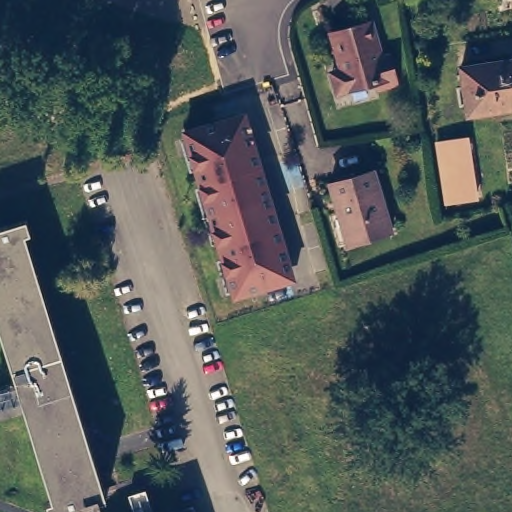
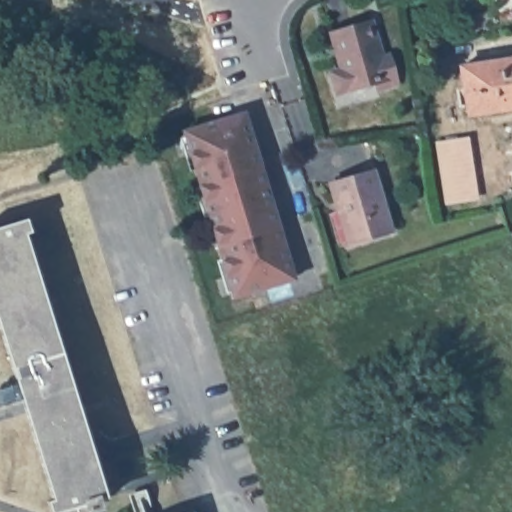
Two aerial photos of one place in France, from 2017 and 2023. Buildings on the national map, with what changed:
unchanged [(332,69),(342,65),(332,29),(371,18),(382,53),(389,51),(397,79),(379,84),(377,78),(348,85),(337,89),(332,69)]
unchanged [(462,63),(512,55),(512,104),(469,110),(462,63)]
unchanged [(178,124),(249,101),(302,284),(233,304),(178,124)]
unchanged [(468,134),(476,194),(447,199),(439,139),(468,134)]
unchanged [(345,198),(341,199),(335,180),(379,167),(391,210),(396,227),(357,239),(349,209),(345,198)]
unchanged [(78,509),(76,504),(52,511),(48,498),(53,496),(0,325),(0,223),(2,223),(27,215),(31,229),(26,230),(91,443),(95,458),(107,494),(95,498),(97,504),(90,506),(92,512),(79,512),(78,509)]
unchanged [(185,510),(195,507),(197,512),(178,512),(185,510)]

